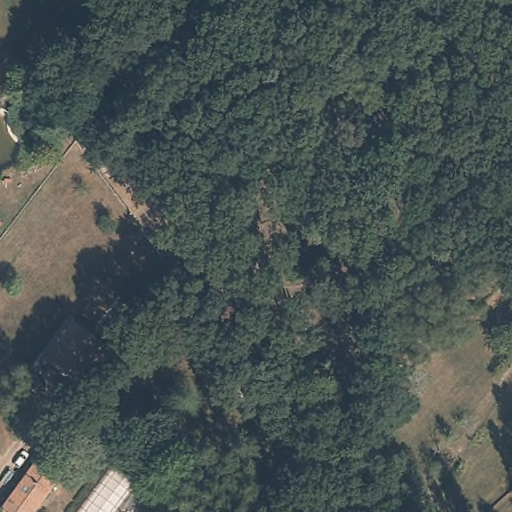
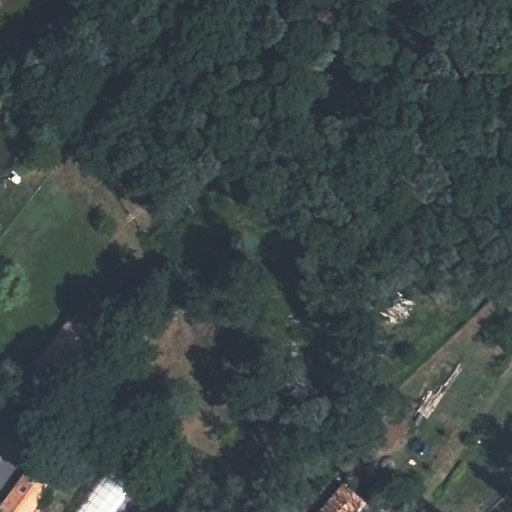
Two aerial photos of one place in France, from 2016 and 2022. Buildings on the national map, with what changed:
unchanged [(94,393),(50,361),(79,322),(122,353),(94,393)]
unchanged [(62,478),(37,512),(9,512),(2,507),(36,460),(62,478)]
new [(371,507),(367,512),(326,512),(335,502),(348,486),(371,507)]

